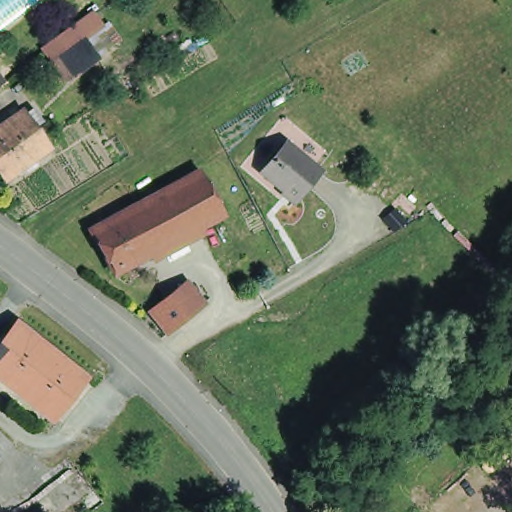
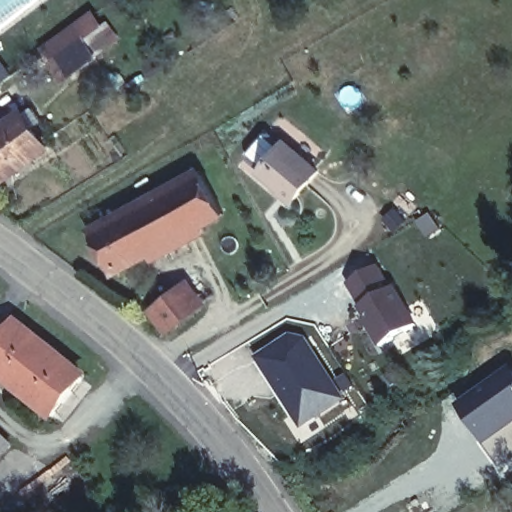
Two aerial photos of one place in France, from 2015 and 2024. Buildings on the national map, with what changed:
unchanged [(69,73),(55,54),(74,40),(75,41),(86,33),(90,37),(100,51),(69,73)]
unchanged [(0,177),(0,139),(23,123),(47,157),(6,185),(0,177)]
unchanged [(300,196),(267,166),(295,135),(328,165),(300,196)]
unchanged [(223,197),(204,208),(180,165),(199,153),(223,197)]
unchanged [(180,165),(204,208),(185,218),(131,249),(107,206),(180,165)]
unchanged [(237,220),(198,241),(185,218),(204,208),(223,197),(237,220)]
unchanged [(131,249),(97,268),(73,225),(107,206),(131,249)]
new [(373,271),(408,337),(385,349),(350,282),(373,271)]
unchanged [(180,294),(195,312),(175,329),(160,309),(180,294)]
unchanged [(13,324),(80,376),(49,415),(0,377),(0,341),(13,324)]
new [(290,331),(303,334),(307,337),(335,380),(345,373),(354,387),(344,394),(347,399),(300,431),(251,359),(290,331)]
new [(512,465),(507,468),(462,411),(512,374),(512,465)]
unchanged [(2,449),(0,451),(0,448),(2,449)]

